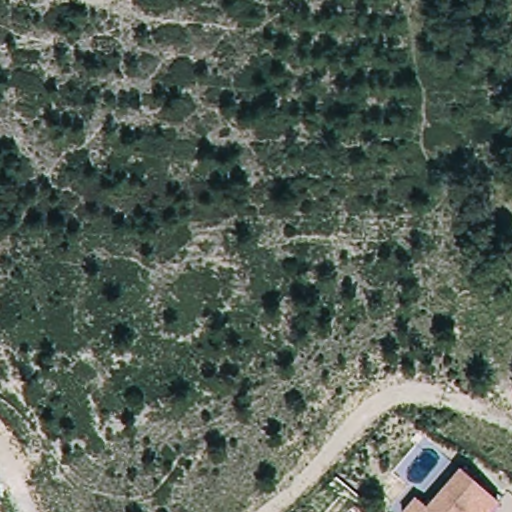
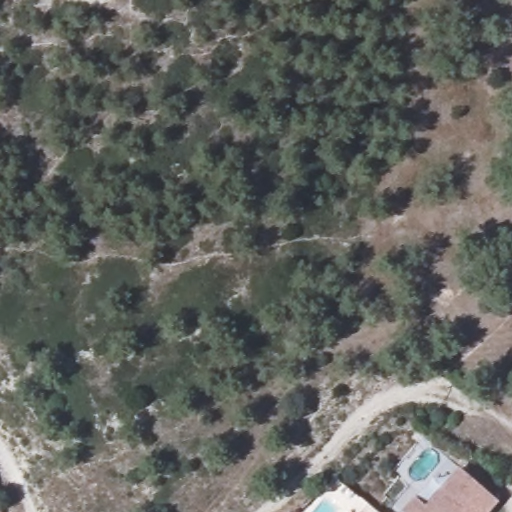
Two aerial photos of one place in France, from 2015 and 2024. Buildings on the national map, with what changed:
unchanged [(427,508),(461,470),(498,503),(490,512),(404,512),(416,498),(427,508)]

